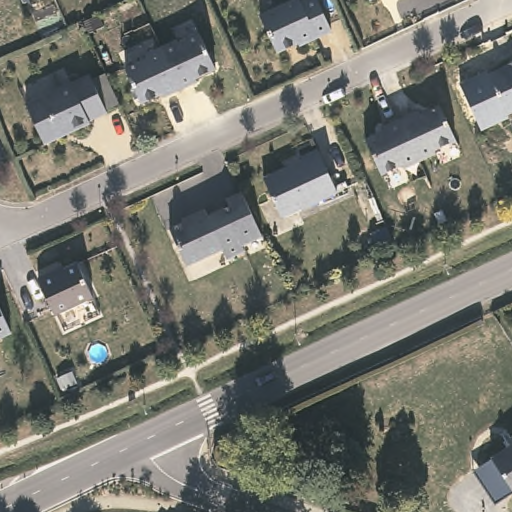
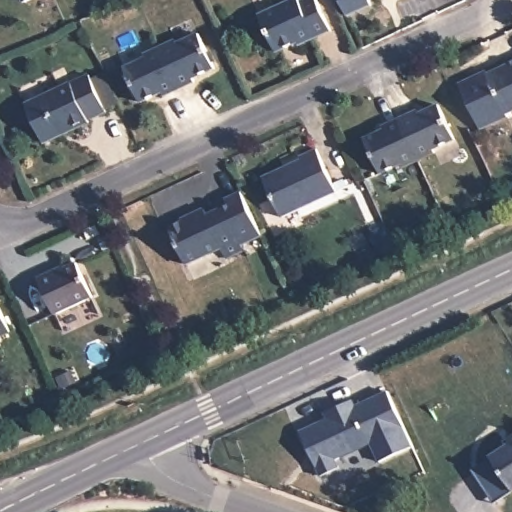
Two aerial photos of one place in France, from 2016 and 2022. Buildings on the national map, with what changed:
new [(20,0),(24,0),(21,1),(20,0)]
unchanged [(300,0),(301,3),(307,0),(318,0),(332,30),(300,45),(299,43),(278,53),(260,16),(295,0),(300,0)]
unchanged [(364,0),(368,0),(365,1),(364,0)]
unchanged [(172,41),(174,44),(195,35),(210,69),(189,79),(190,83),(175,89),(156,49),(172,41)]
unchanged [(175,89),(159,96),(158,93),(141,101),(136,103),(120,69),(125,67),(142,59),(140,56),(156,49),(175,89)]
unchanged [(461,86),(481,76),(512,62),(512,110),(499,116),(478,125),(461,86)]
unchanged [(105,111),(88,120),(89,123),(43,143),(25,105),(89,76),(105,111)]
unchanged [(402,119),(419,111),(421,115),(440,106),(456,140),(434,149),(436,153),(420,160),(402,119)]
unchanged [(420,160),(404,168),(403,164),(382,174),(366,140),(385,131),(384,128),(402,119),(420,160)]
unchanged [(332,193),(275,218),(258,179),(298,160),(297,157),(312,149),(332,193)]
unchanged [(193,214),(200,210),(204,217),(224,207),(222,200),(237,193),(257,237),(237,246),(239,252),(222,259),(218,250),(211,253),(182,266),(165,230),(187,220),(185,218),(193,214)]
unchanged [(89,294),(51,312),(34,274),(49,268),(50,271),(75,260),(89,294)]
unchanged [(0,332),(0,312),(8,329),(0,332)]
new [(381,459),(374,442),(335,459),(337,467),(319,475),(299,432),(327,419),(324,413),(353,397),(357,405),(386,391),(412,447),(381,459)]
unchanged [(491,457),(512,443),(512,489),(491,457)]

